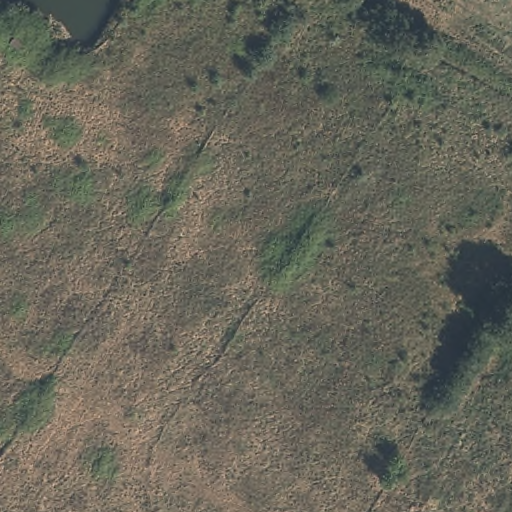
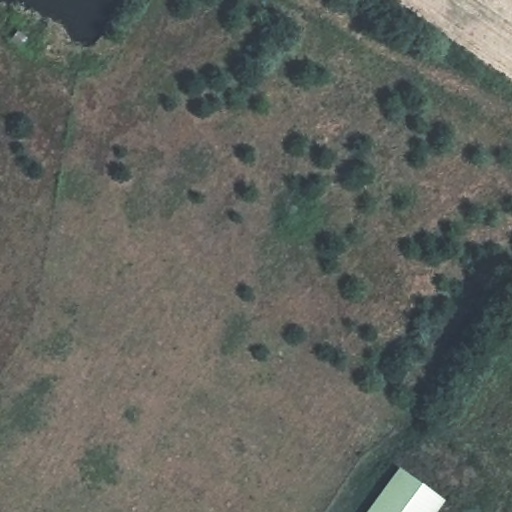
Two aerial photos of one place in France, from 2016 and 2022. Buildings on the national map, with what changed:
new [(443,497),(432,512),(364,512),(398,465),(443,497)]

